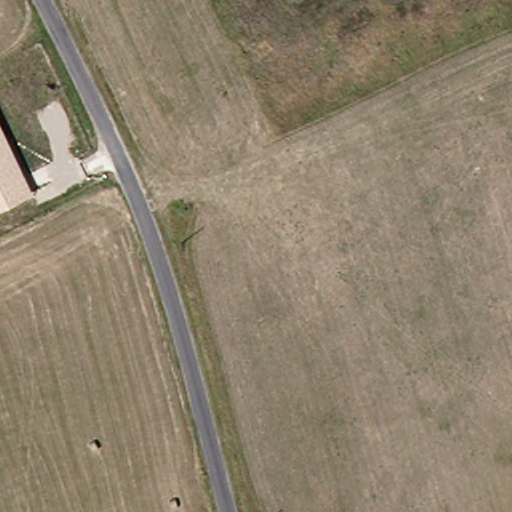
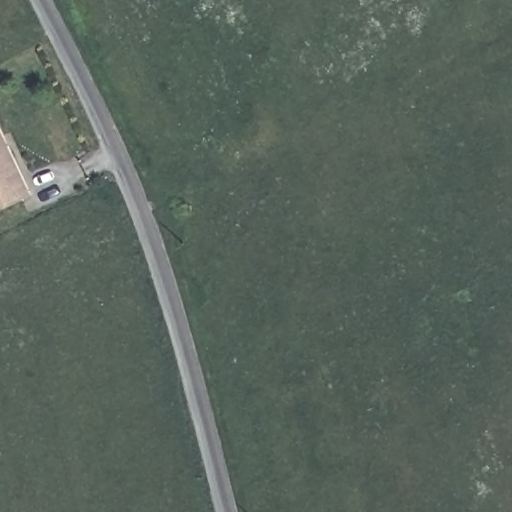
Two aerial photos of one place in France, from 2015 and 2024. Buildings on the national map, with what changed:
unchanged [(2,136),(6,145),(29,194),(0,207),(0,133),(2,136)]

